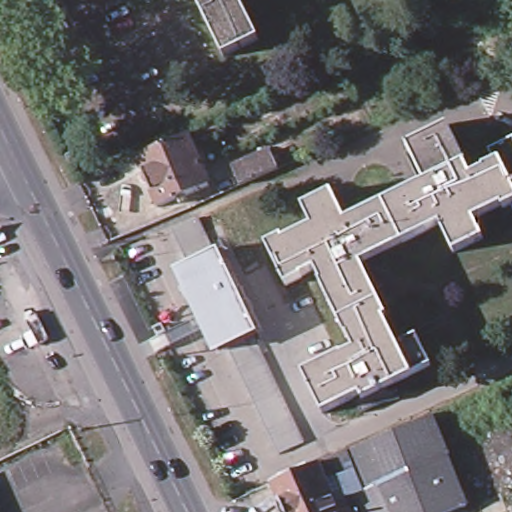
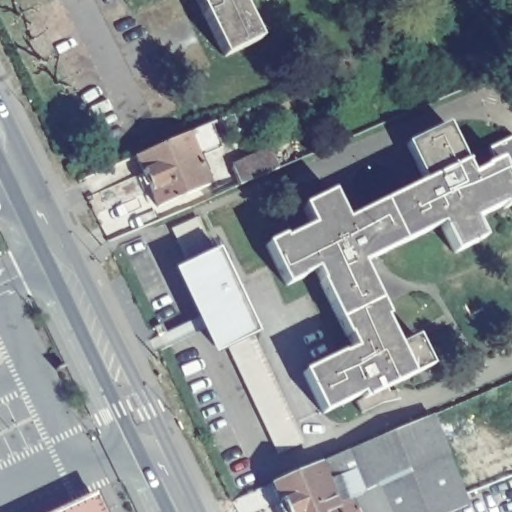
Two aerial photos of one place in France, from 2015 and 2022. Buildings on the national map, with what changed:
unchanged [(255,42),(219,59),(191,2),(195,0),(242,0),(235,3),(255,42)]
unchanged [(210,124),(215,133),(185,146),(204,188),(154,209),(132,159),(182,137),(210,124)]
unchanged [(479,224),(485,238),(455,253),(442,224),(402,243),(382,201),(424,181),(407,145),(445,126),(470,178),(500,164),(493,149),(512,140),(512,207),(479,224)]
unchanged [(233,166),(268,152),(275,172),(242,186),(233,166)]
unchanged [(314,272),(287,285),(267,244),(309,223),(300,205),(330,190),(344,219),(382,201),(402,243),(360,264),(379,301),(338,320),(314,272)]
unchanged [(204,305),(199,294),(193,283),(188,272),(182,259),(177,247),(170,234),(195,223),(201,236),(207,248),(212,261),(217,272),(223,283),(228,294),(235,308),(240,318),(244,329),(249,339),(255,354),(262,366),(267,379),(273,391),(279,403),(284,414),(289,424),(294,434),(299,446),(274,457),(269,446),(264,436),(259,425),(254,414),(249,402),(242,389),(237,377),(231,364),(225,351),(220,339),(215,329),(210,319),(204,305)]
unchanged [(379,301),(401,347),(416,340),(430,370),(362,404),(359,399),(323,417),(304,377),(354,352),(338,320),(379,301)]
unchanged [(265,484),(340,451),(341,453),(427,417),(462,507),(464,512),(463,512),(277,512),(265,484)]
new [(94,494),(103,512),(56,512),(94,494)]

